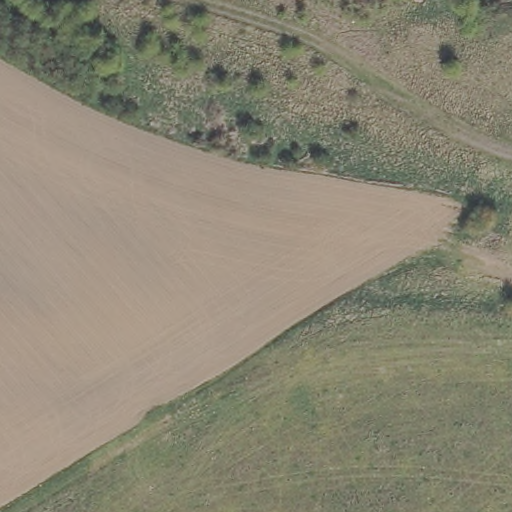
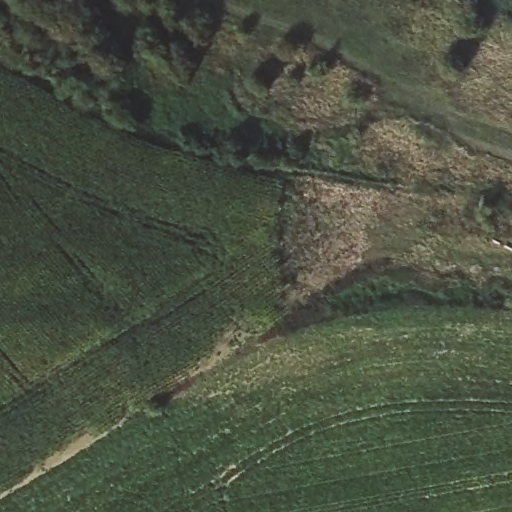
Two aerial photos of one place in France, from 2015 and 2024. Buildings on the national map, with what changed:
unchanged [(412,0),(430,0),(429,3),(412,0)]

